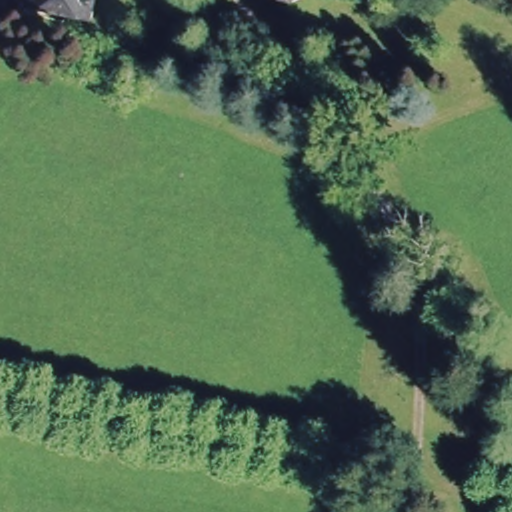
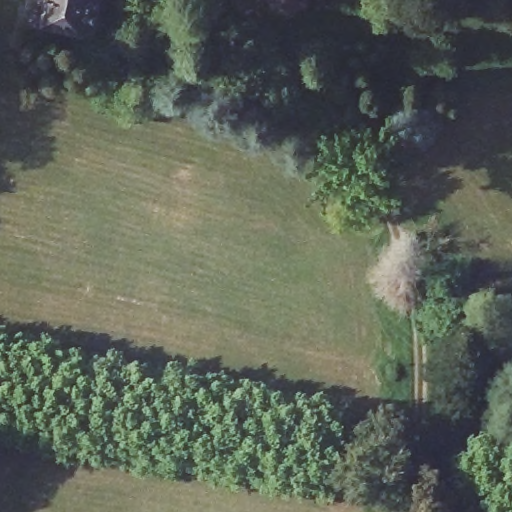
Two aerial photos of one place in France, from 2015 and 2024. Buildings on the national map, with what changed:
unchanged [(90,21),(29,11),(31,0),(94,0),(90,21)]
unchanged [(289,8),(278,5),(280,0),(291,0),(289,8)]

